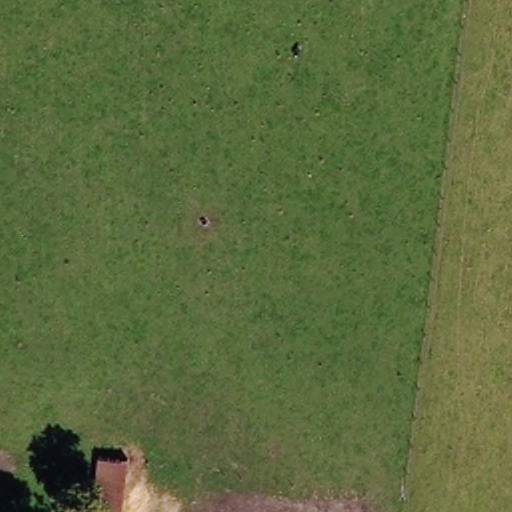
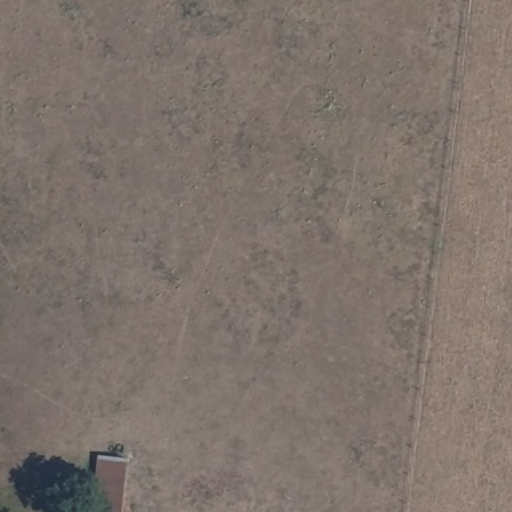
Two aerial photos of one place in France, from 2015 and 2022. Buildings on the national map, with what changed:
unchanged [(97,480),(100,461),(132,464),(127,512),(94,512),(97,480)]

